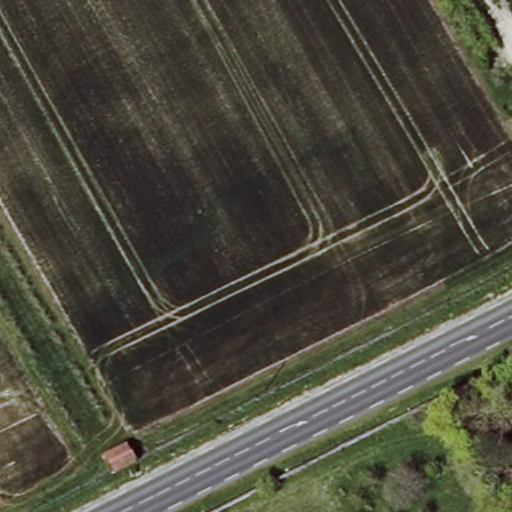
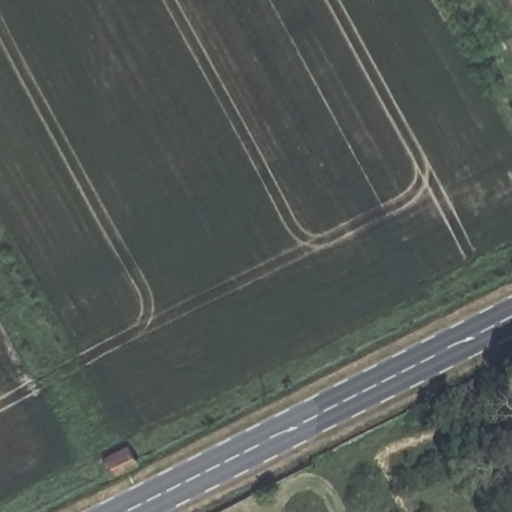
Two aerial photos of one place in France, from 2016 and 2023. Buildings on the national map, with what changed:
unchanged [(95,462),(121,449),(129,464),(103,477),(100,470),(95,462)]

